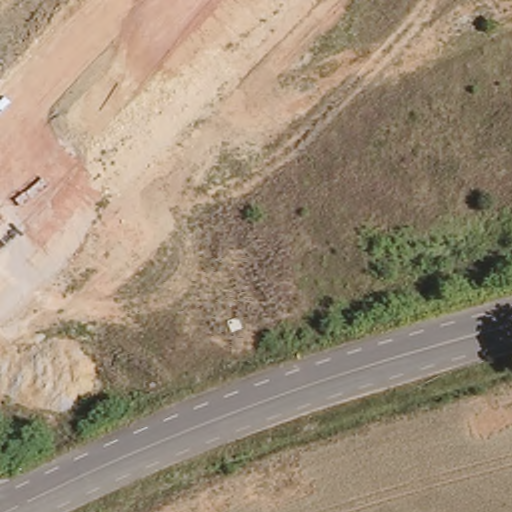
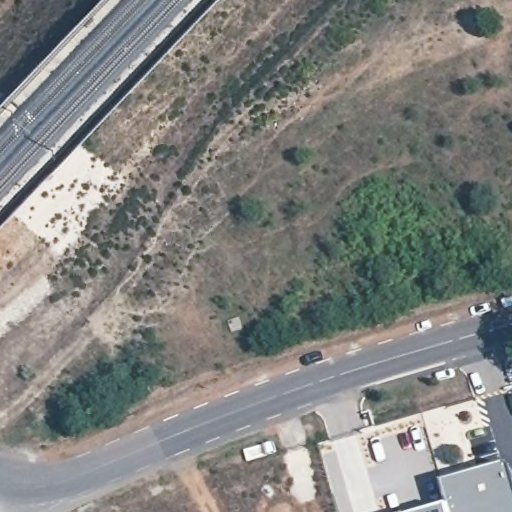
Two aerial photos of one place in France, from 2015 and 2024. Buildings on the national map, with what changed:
new [(512,467),(512,469),(512,512),(451,512),(450,510),(443,486),(512,467)]
new [(450,510),(451,512),(442,512),(450,510)]

